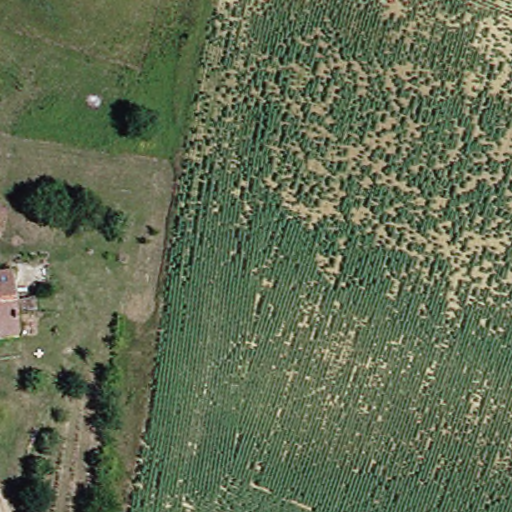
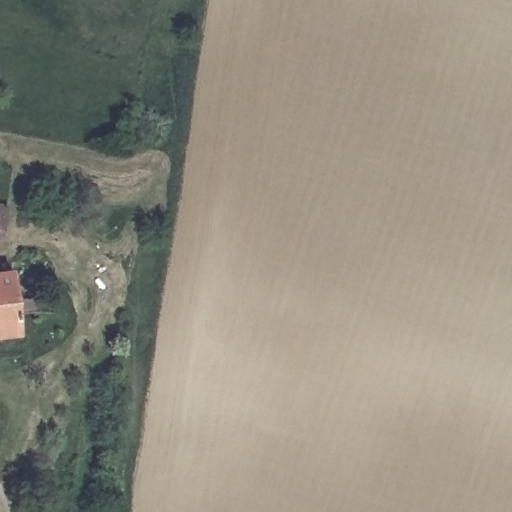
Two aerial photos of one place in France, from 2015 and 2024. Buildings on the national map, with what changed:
unchanged [(0,335),(0,273),(8,334),(0,335)]

